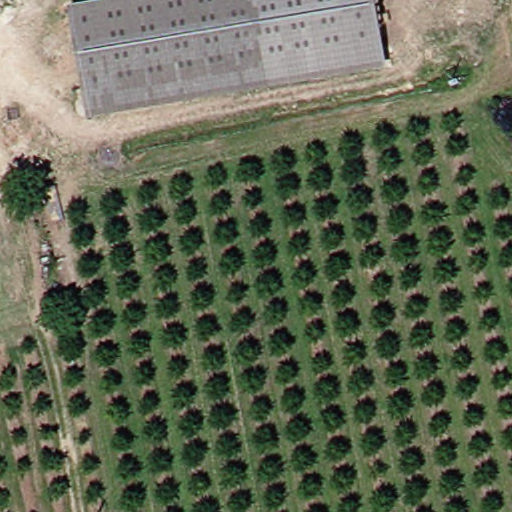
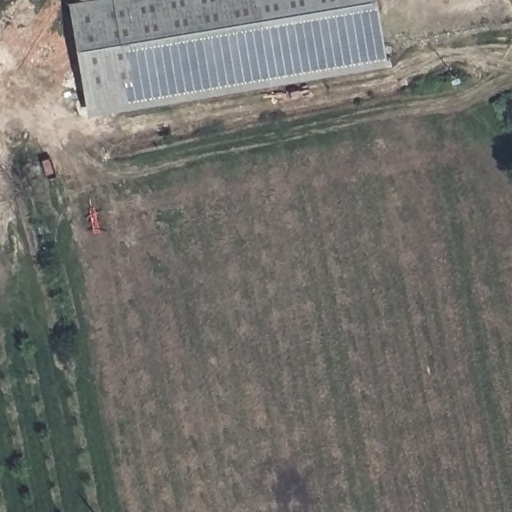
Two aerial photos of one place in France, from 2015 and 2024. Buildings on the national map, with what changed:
unchanged [(91,118),(74,6),(105,0),(382,0),(393,69),(91,118)]

